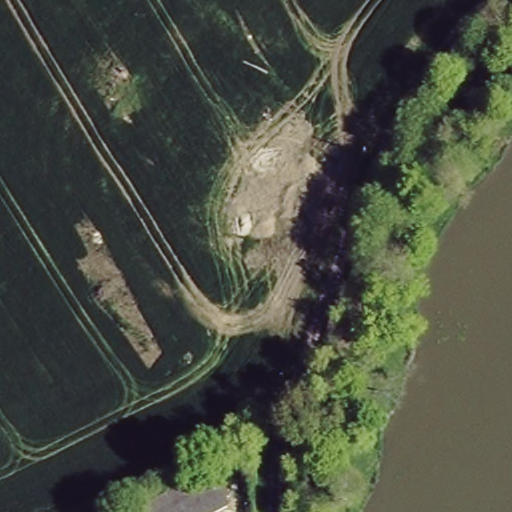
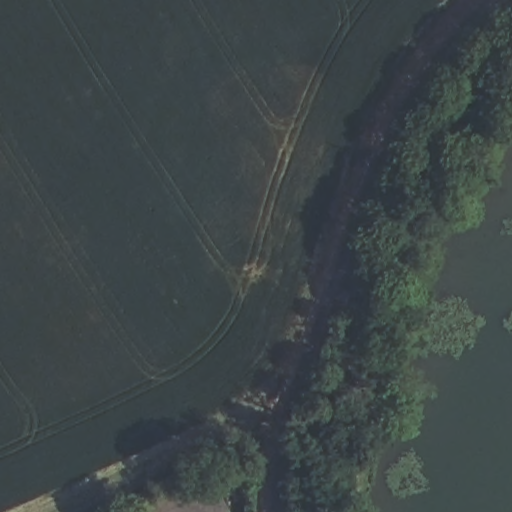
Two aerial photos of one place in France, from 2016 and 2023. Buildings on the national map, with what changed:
unchanged [(187,485),(192,495),(217,486),(227,512),(144,512),(142,506),(187,485)]

